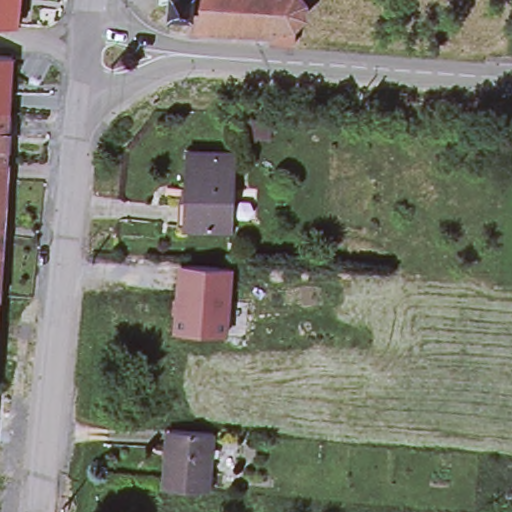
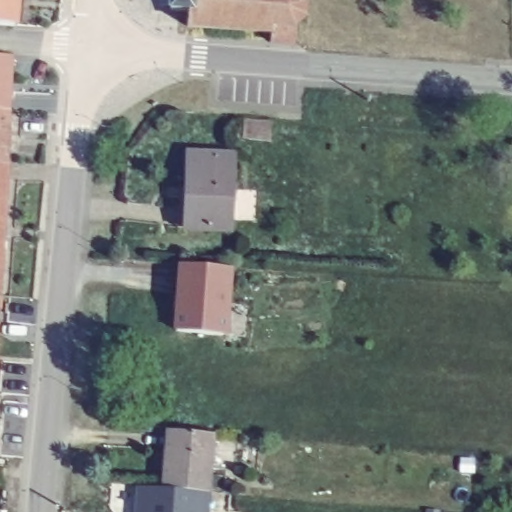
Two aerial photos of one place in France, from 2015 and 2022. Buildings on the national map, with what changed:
unchanged [(0,0),(18,0),(16,20),(0,19),(0,0)]
unchanged [(295,20),(294,39),(269,36),(270,27),(187,21),(188,6),(169,5),(170,0),(304,0),(303,11),(295,20)]
unchanged [(0,115),(0,61),(16,62),(14,93),(13,116),(8,116),(0,115)]
unchanged [(10,168),(0,167),(0,117),(13,118),(10,168)]
unchanged [(231,155),(228,231),(183,228),(186,152),(231,155)]
unchanged [(8,219),(0,219),(0,167),(10,168),(8,219)]
unchanged [(1,302),(0,302),(0,219),(8,219),(1,302)]
unchanged [(231,267),(226,334),(176,330),(182,263),(231,267)]
unchanged [(0,315),(0,302),(1,302),(0,315)]
unchanged [(171,447),(173,428),(215,432),(209,491),(164,487),(167,447),(171,447)]
new [(209,512),(134,512),(136,484),(164,487),(209,491),(209,512)]

